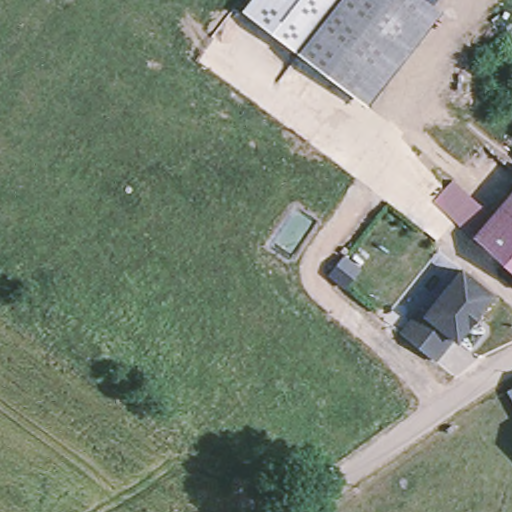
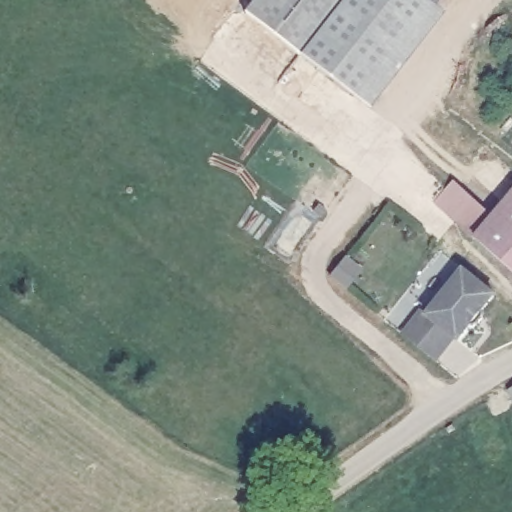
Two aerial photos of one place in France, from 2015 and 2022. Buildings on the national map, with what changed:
unchanged [(251,0),(345,0),(305,51),(242,12),(251,0)]
unchanged [(305,51),(345,0),(431,0),(359,93),(305,51)]
unchanged [(439,203),(441,201),(457,183),(498,220),(485,234),(480,240),(439,203)]
unchanged [(485,234),(498,220),(501,217),(512,204),(512,267),(480,240),(485,234)]
unchanged [(422,307),(427,311),(463,267),(495,292),(483,306),(483,313),(477,322),(470,322),(458,337),(455,334),(435,358),(402,332),(422,307)]
unchanged [(512,390),(512,397),(509,392),(512,390)]

